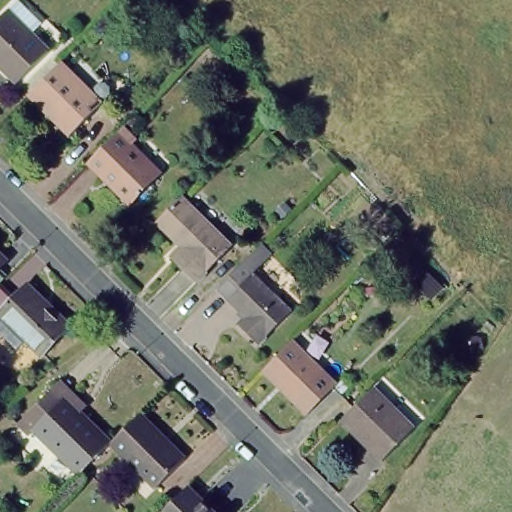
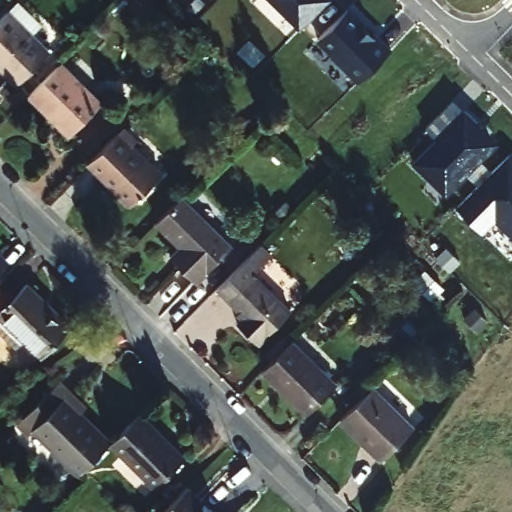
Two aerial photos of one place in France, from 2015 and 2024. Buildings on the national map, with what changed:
new [(273,0),(326,0),(300,27),(273,0)]
unchanged [(0,75),(0,17),(15,2),(40,27),(29,38),(45,55),(12,87),(0,75)]
new [(317,41),(347,12),(382,46),(352,76),(317,41)]
unchanged [(59,62),(100,104),(70,132),(55,118),(54,120),(27,94),(59,62)]
new [(434,135),(426,127),(454,100),(465,107),(500,142),(446,196),(412,162),(434,135)]
unchanged [(123,126),(136,139),(130,144),(160,174),(131,202),(89,161),(123,126)]
new [(512,157),(512,237),(495,221),(483,232),(457,206),(509,154),(512,157)]
unchanged [(184,197),(232,245),(195,281),(172,257),(185,246),(160,222),(184,197)]
unchanged [(0,254),(0,244),(5,249),(0,254)]
unchanged [(255,343),(236,324),(242,317),(225,300),(214,289),(257,246),(268,257),(251,273),(289,311),(255,343)]
unchanged [(2,272),(15,287),(30,273),(72,317),(45,343),(28,327),(17,337),(0,320),(0,257),(9,266),(2,272)]
unchanged [(294,342),(337,386),(309,414),(265,371),(294,342)]
unchanged [(35,428),(30,433),(17,422),(50,388),(59,380),(85,406),(79,412),(110,443),(80,474),(35,428)]
unchanged [(374,388),(414,427),(381,460),(342,421),(374,388)]
unchanged [(140,415),(185,459),(155,488),(110,443),(140,415)]
unchanged [(185,487),(210,512),(160,512),(185,487)]

